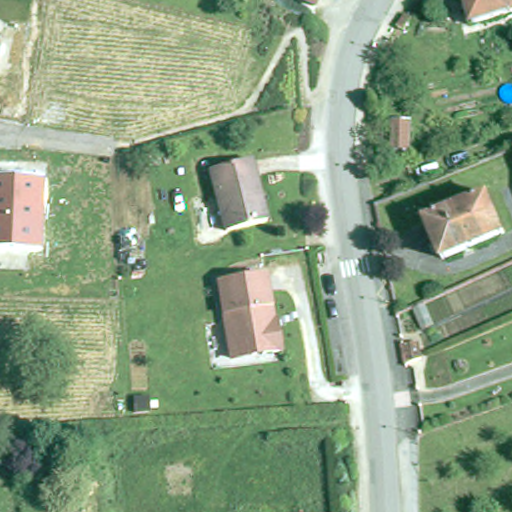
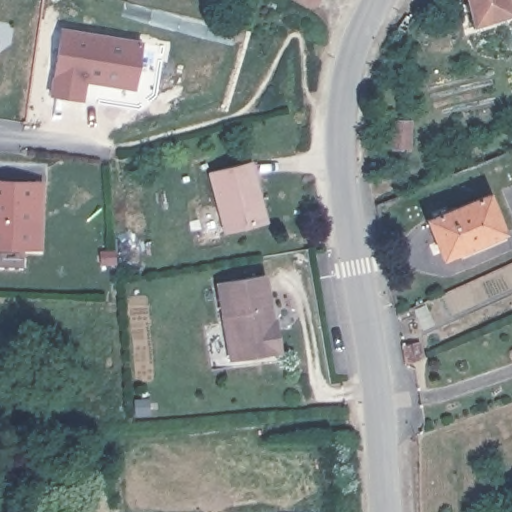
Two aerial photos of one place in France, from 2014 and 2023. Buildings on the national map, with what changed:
unchanged [(289,0),(322,0),(313,14),(289,2),(289,0)]
unchanged [(473,24),(467,0),(512,0),(512,12),(500,16),(473,24)]
unchanged [(412,19),(405,30),(399,26),(405,17),(407,15),(412,19)]
new [(61,27),(143,41),(135,91),(87,83),(84,102),(50,96),(61,27)]
unchanged [(393,152),(393,120),(412,120),(411,151),(393,152)]
unchanged [(250,162),(265,221),(225,231),(210,173),(250,162)]
unchanged [(43,180),(42,249),(0,248),(0,179),(43,180)]
unchanged [(505,233),(442,259),(426,219),(489,194),(505,233)]
unchanged [(275,321),(279,345),(259,349),(259,346),(227,352),(217,291),(265,283),(267,300),(266,300),(268,314),(273,313),(275,321)]
unchanged [(418,342),(422,361),(405,364),(402,345),(418,342)]

